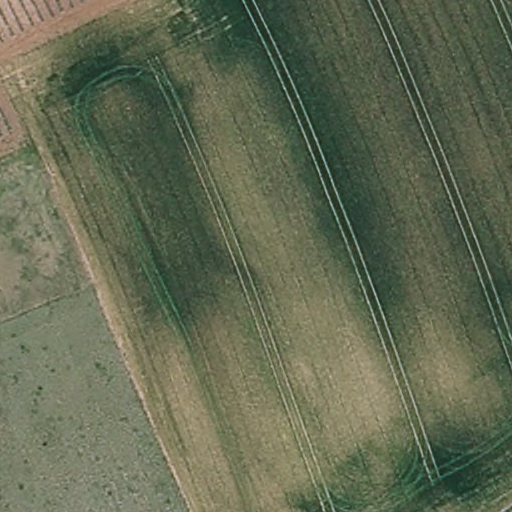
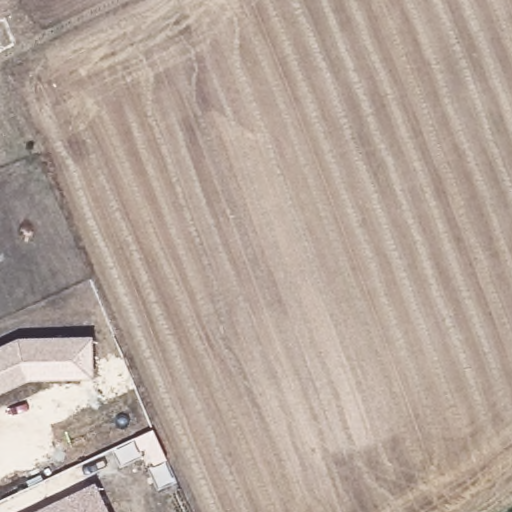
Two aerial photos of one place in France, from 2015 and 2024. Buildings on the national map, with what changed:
new [(93,335),(94,377),(26,380),(0,392),(0,346),(17,337),(93,335)]
new [(109,512),(31,512),(95,482),(109,512)]

